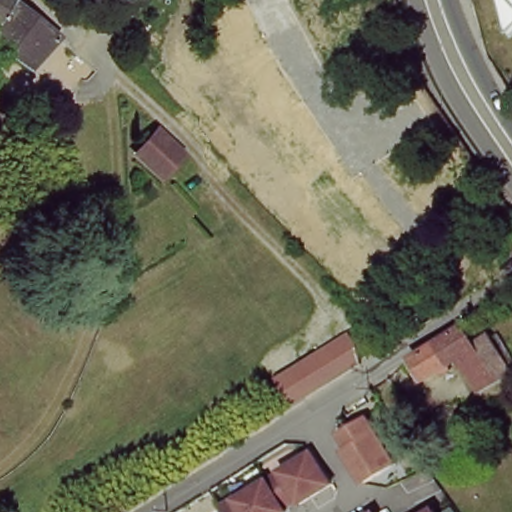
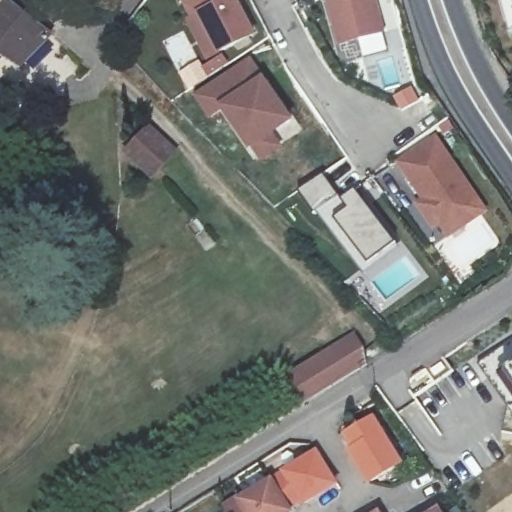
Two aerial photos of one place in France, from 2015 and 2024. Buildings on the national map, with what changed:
unchanged [(30,67),(0,46),(0,0),(24,0),(59,27),(30,67)]
new [(216,54),(207,61),(184,19),(189,15),(181,0),(237,0),(256,35),(216,54)]
new [(376,0),(385,33),(338,44),(325,0),(376,0)]
unchanged [(501,0),(512,0),(512,33),(503,6),(501,0)]
new [(194,96),(252,58),(263,76),(293,121),(273,135),(283,147),(261,162),(250,151),(223,113),(211,121),(194,96)]
unchanged [(178,153),(154,179),(125,151),(151,130),(178,153)]
new [(414,203),(420,199),(396,161),(437,135),(489,213),(449,240),(439,227),(432,231),(414,203)]
new [(323,175),(341,201),(355,192),(394,244),(399,249),(365,275),(317,212),(314,214),(298,191),(323,175)]
demolished [(417,364),(467,333),(479,350),(495,340),(512,367),(512,375),(483,393),(465,365),(430,387),(417,364)]
new [(502,433),(507,408),(477,363),(512,339),(512,435),(502,433)]
unchanged [(282,390),(338,352),(353,368),(293,406),(282,390)]
new [(445,369),(435,376),(431,370),(441,363),(445,369)]
unchanged [(376,420),(395,452),(398,451),(407,464),(377,483),(368,469),(362,468),(345,440),(376,420)]
unchanged [(321,454),(328,467),(340,486),(308,505),(306,501),(292,509),(275,482),(321,454)]
unchanged [(230,510),(275,482),(292,509),(293,510),(294,512),(231,512),(230,510)]
unchanged [(440,508),(443,512),(434,512),(440,508)]

